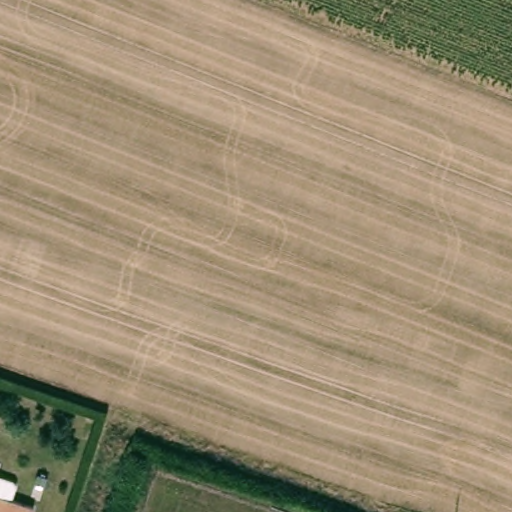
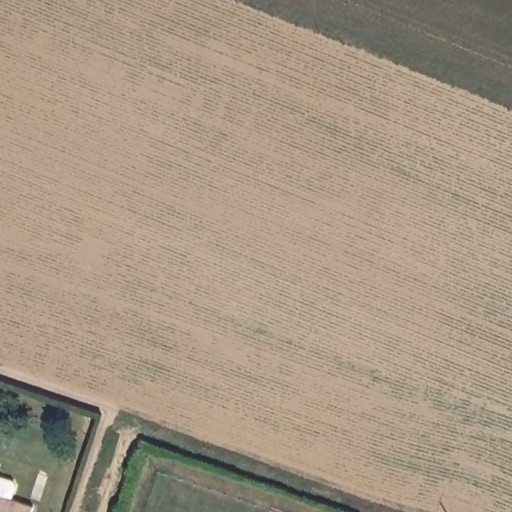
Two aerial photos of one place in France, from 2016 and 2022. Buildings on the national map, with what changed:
unchanged [(34,512),(0,512),(0,490),(37,502),(34,512)]

